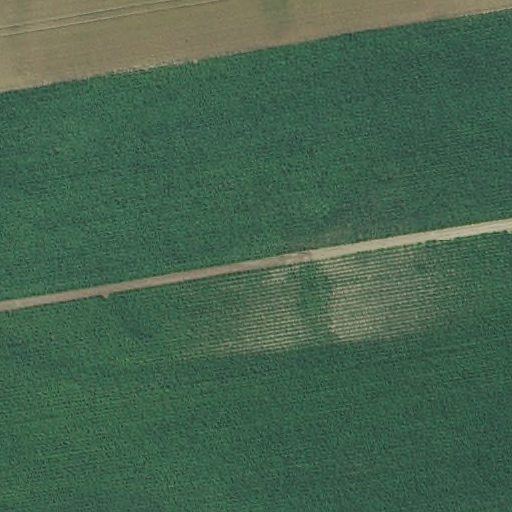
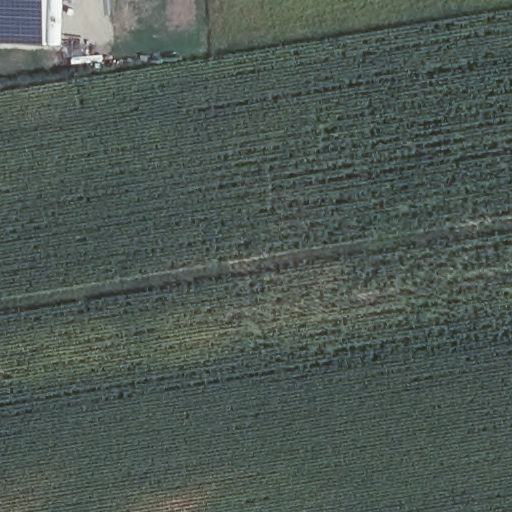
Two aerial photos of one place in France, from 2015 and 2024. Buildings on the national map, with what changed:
new [(0,37),(0,0),(43,0),(41,38),(0,37)]

